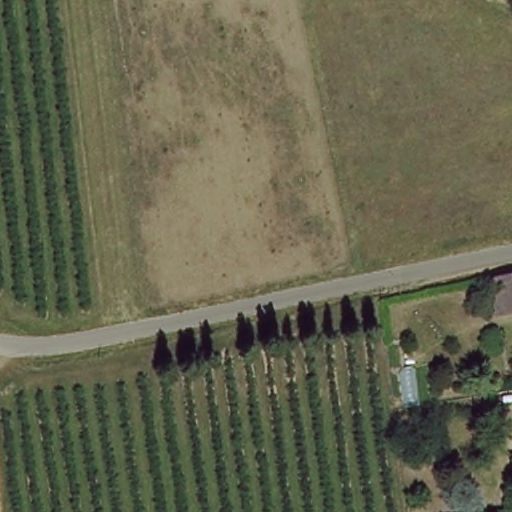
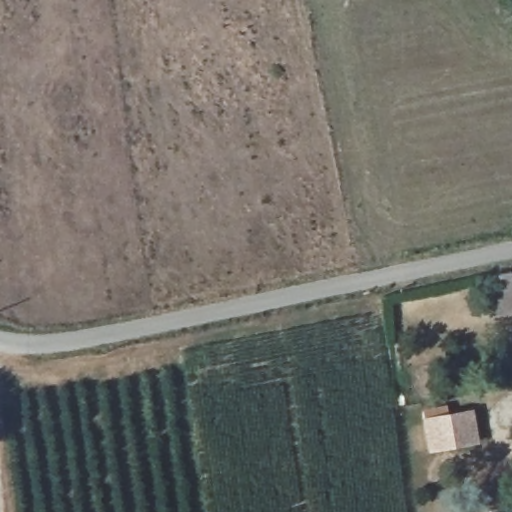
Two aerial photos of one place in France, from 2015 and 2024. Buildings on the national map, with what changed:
unchanged [(512,272),(512,312),(488,315),(482,278),(512,272)]
new [(475,414),(479,446),(425,453),(421,421),(475,414)]

